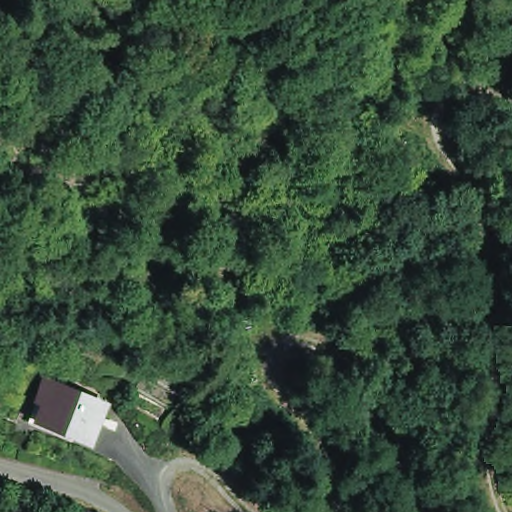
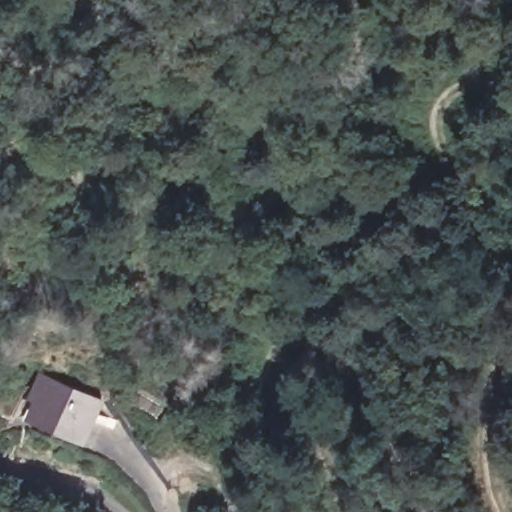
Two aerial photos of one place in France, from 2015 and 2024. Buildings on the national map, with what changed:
unchanged [(86,440),(32,420),(38,403),(30,400),(38,380),(100,403),(86,440)]

